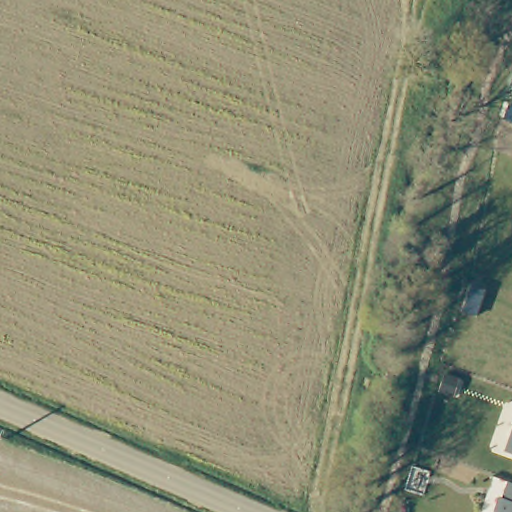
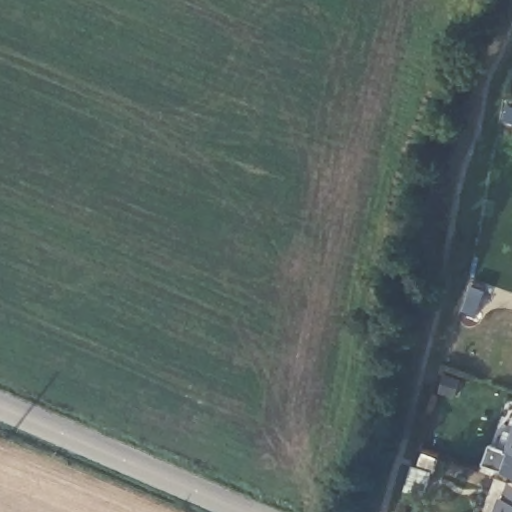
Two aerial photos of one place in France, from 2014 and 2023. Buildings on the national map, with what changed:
unchanged [(506,452),(512,435),(512,455),(506,452)]
unchanged [(497,512),(496,511),(501,497),(503,498),(509,483),(512,484),(512,512),(497,512)]

